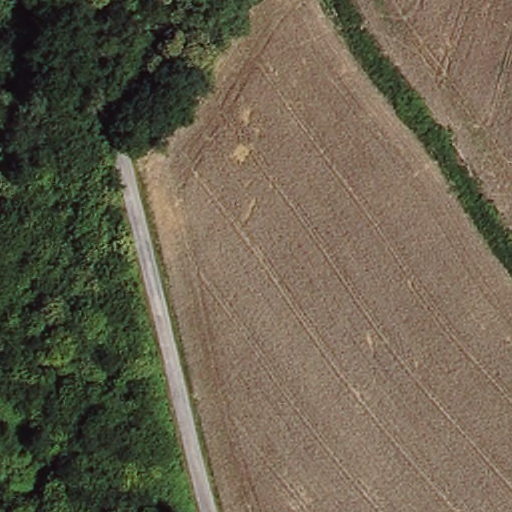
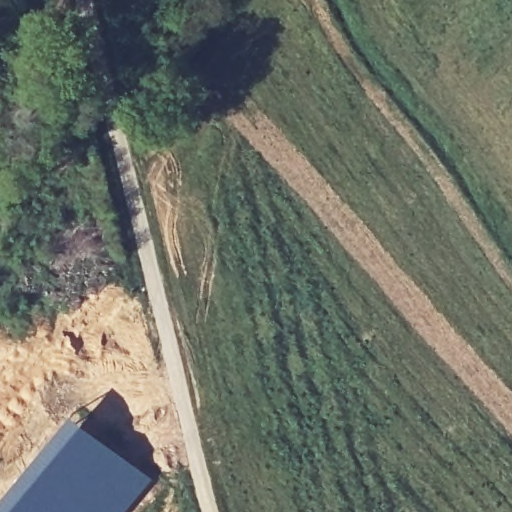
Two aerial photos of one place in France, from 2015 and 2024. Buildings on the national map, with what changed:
new [(89,430),(151,479),(124,512),(0,512),(0,498),(68,416),(89,430)]

